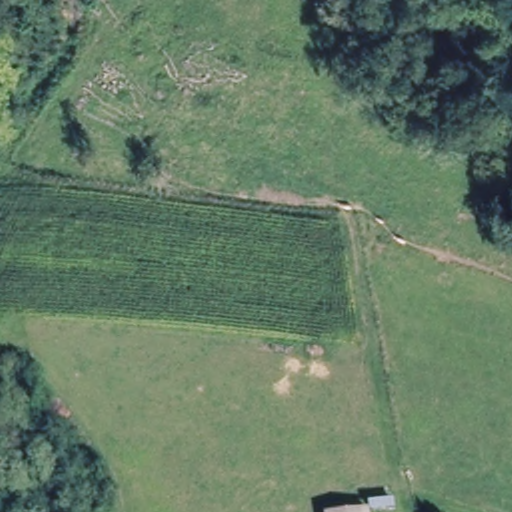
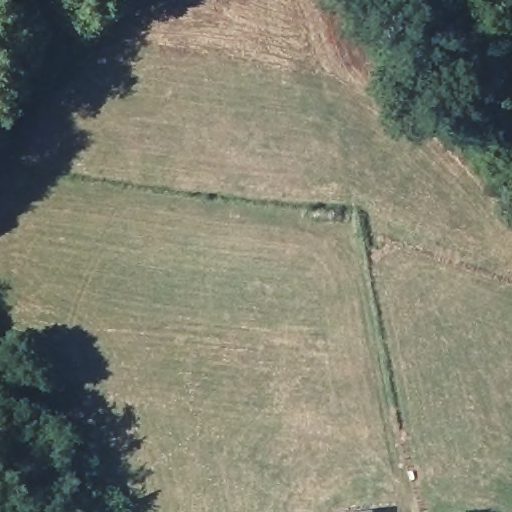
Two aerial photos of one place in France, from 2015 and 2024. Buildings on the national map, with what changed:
unchanged [(372,506),(372,512),(330,512),(329,511),(372,506)]

